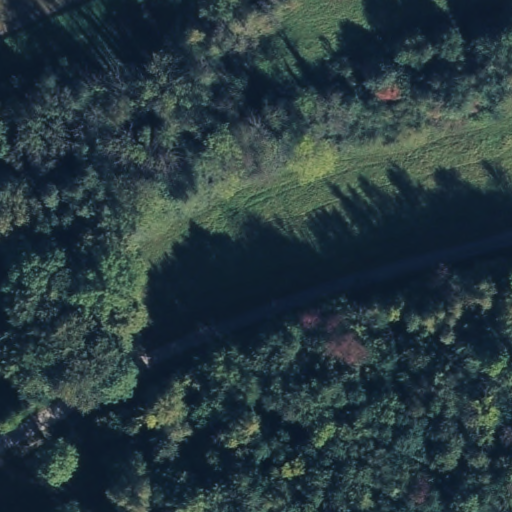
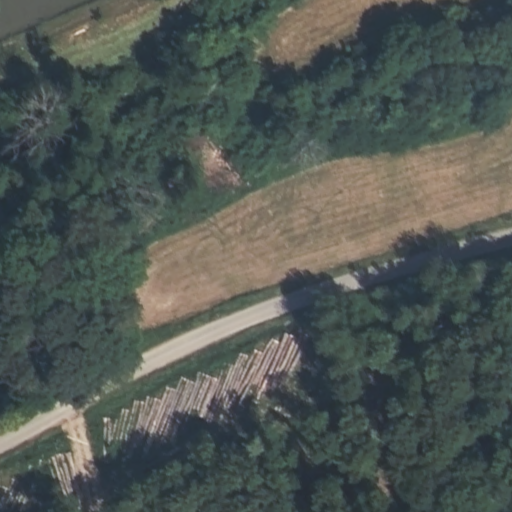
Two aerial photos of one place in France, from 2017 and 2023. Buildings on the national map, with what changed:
unchanged [(0,283),(0,274),(2,283),(0,283)]

